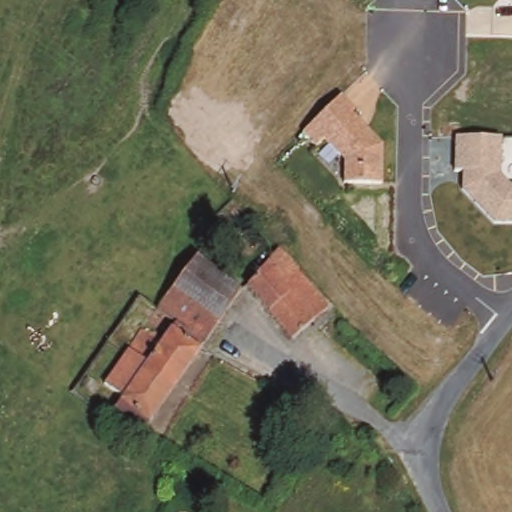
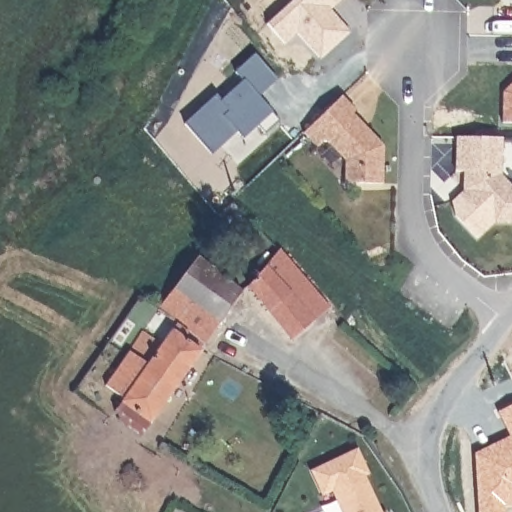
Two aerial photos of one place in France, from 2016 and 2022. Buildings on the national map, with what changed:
new [(284,44),(266,23),(292,0),(339,0),(329,10),(350,32),(320,58),(296,34),(284,44)]
new [(276,79),(257,96),(278,118),(264,132),(257,126),(243,139),(236,132),(210,154),(183,125),(214,98),(218,103),(241,81),(234,74),(254,54),(276,79)]
new [(502,124),(502,92),(512,82),(512,124),(502,124)]
unchanged [(357,111),(354,116),(384,146),(382,186),(343,185),(343,161),(324,142),(318,149),(302,133),(340,96),(357,111)]
unchanged [(501,137),(500,175),(512,186),(512,222),(494,222),(461,187),(462,171),(454,171),(455,136),(501,137)]
unchanged [(263,272),(277,254),(328,308),(311,323),(263,272)]
unchanged [(176,327),(155,312),(193,260),(238,295),(202,345),(176,327)]
unchanged [(289,341),(244,291),(263,272),(311,323),(289,341)]
unchanged [(166,395),(140,374),(150,358),(133,345),(141,332),(161,347),(176,327),(202,345),(193,358),(166,395)]
unchanged [(120,426),(111,412),(116,405),(121,400),(103,387),(109,379),(133,345),(150,358),(140,374),(166,395),(145,423),(135,437),(120,426)]
new [(501,413),(512,407),(512,435),(501,413)]
new [(508,506),(509,512),(483,512),(479,455),(512,438),(512,506),(508,506)]
new [(331,492),(321,496),(310,470),(357,449),(368,475),(364,477),(381,512),(341,512),(331,492)]

